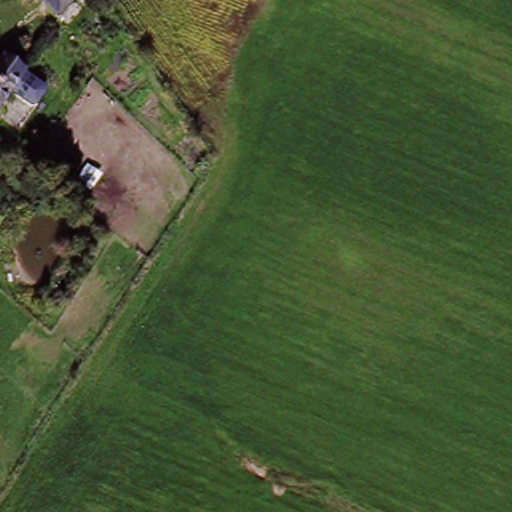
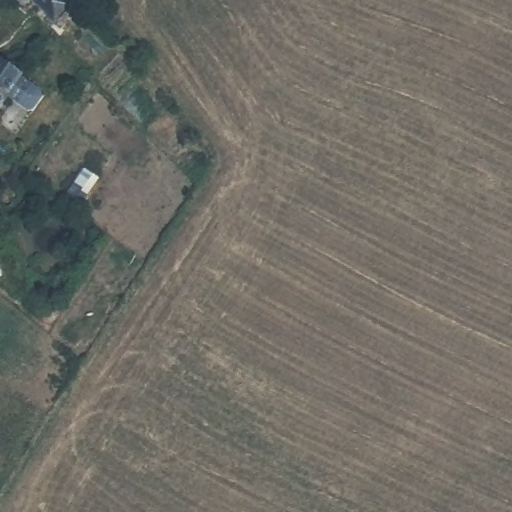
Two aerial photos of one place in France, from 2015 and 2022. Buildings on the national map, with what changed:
unchanged [(60,8),(45,24),(26,6),(20,13),(7,0),(52,0),(53,1),(60,8)]
unchanged [(0,69),(16,79),(10,88),(0,106),(0,69)]

